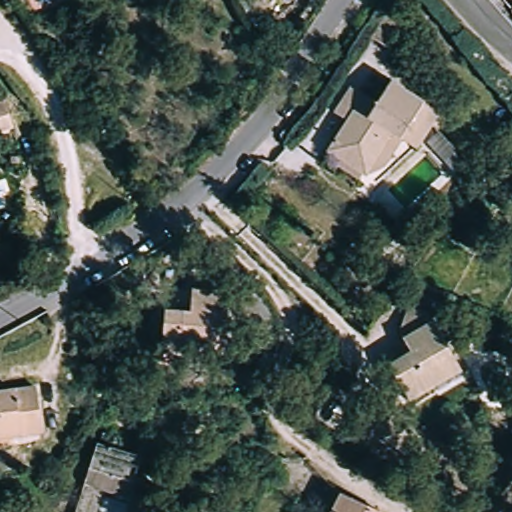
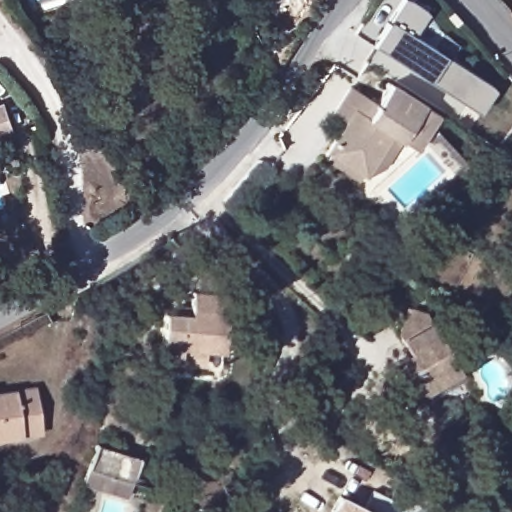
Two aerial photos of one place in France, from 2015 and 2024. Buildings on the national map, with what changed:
new [(421,7),(426,12),(412,34),(488,83),(493,88),(477,112),(380,50),(371,45),(378,35),(400,0),(411,0),(421,7)]
unchanged [(53,8),(58,34),(43,37),(36,13),(53,8)]
unchanged [(511,12),(512,11),(512,13),(511,12)]
unchanged [(323,154),(328,146),(348,117),(334,109),(351,83),(377,99),(391,79),(438,109),(417,145),(412,142),(375,177),(366,170),(362,168),(358,177),(323,154)]
unchanged [(16,127),(0,130),(0,98),(8,97),(16,127)]
unchanged [(183,358),(184,350),(166,349),(169,308),(182,309),(183,296),(196,298),(198,287),(233,290),(229,334),(211,332),(209,359),(183,358)]
unchanged [(393,367),(416,353),(405,331),(415,310),(433,316),(464,373),(414,399),(393,367)]
unchanged [(46,428),(0,433),(0,388),(41,383),(46,428)]
unchanged [(106,491),(83,484),(97,445),(140,458),(133,479),(128,497),(106,491)]
unchanged [(334,512),(341,497),(372,512),(334,512)]

